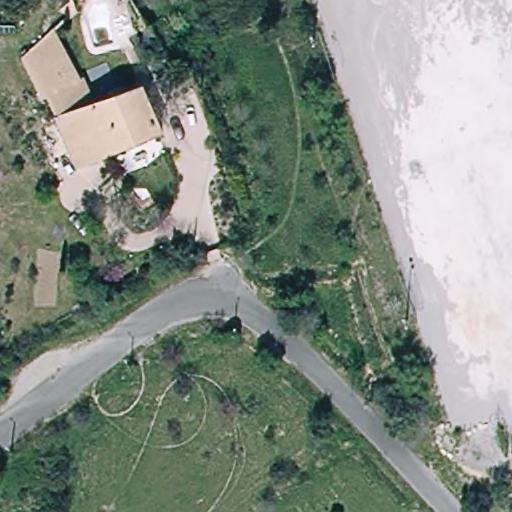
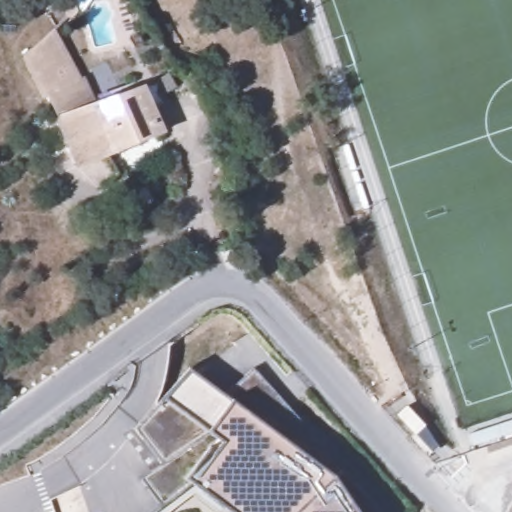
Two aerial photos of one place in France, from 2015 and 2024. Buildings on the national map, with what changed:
unchanged [(61,14),(55,6),(63,0),(68,0),(72,10),(64,17),(61,14)]
unchanged [(81,79),(86,88),(108,80),(113,94),(131,85),(154,135),(73,171),(62,147),(74,142),(62,119),(53,122),(43,99),(37,101),(26,76),(20,63),(21,63),(50,27),(64,58),(75,81),(81,79)]
new [(254,370),(381,512),(228,512),(192,486),(162,508),(140,480),(162,466),(135,430),(189,369),(227,397),(254,370)]
unchanged [(395,392),(408,407),(398,417),(384,403),(395,392)]

